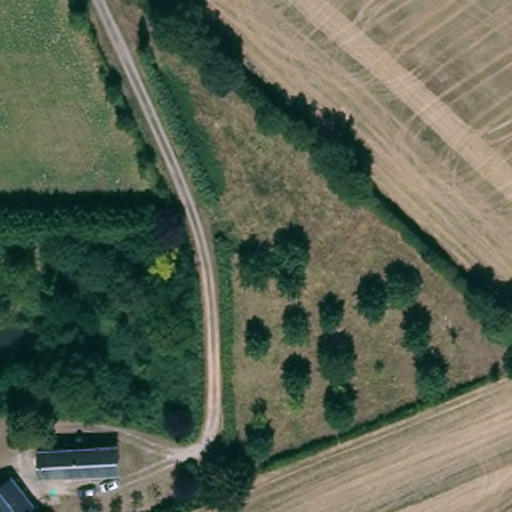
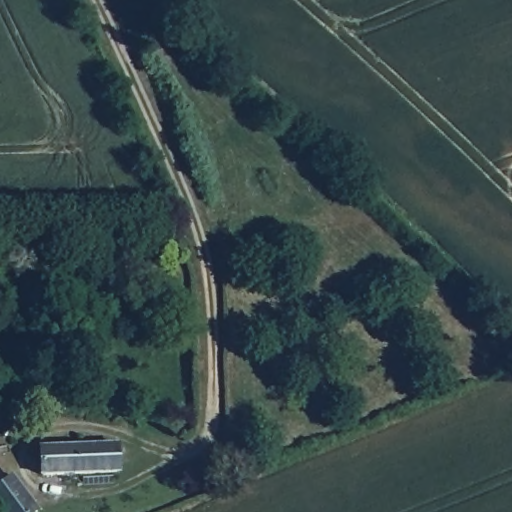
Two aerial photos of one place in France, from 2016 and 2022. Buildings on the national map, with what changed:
unchanged [(119,442),(121,471),(35,479),(33,451),(119,442)]
unchanged [(0,478),(9,472),(39,510),(42,512),(2,512),(0,509),(0,478)]

